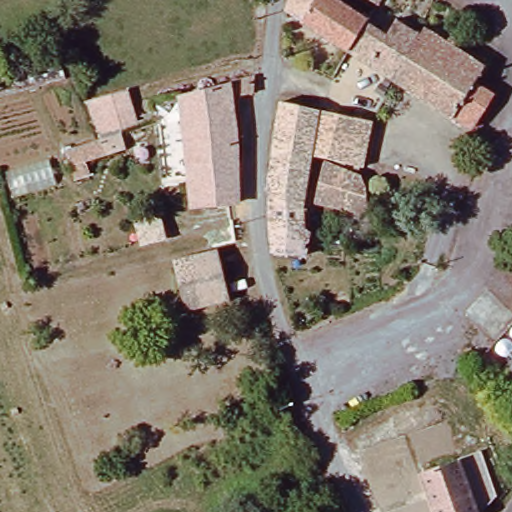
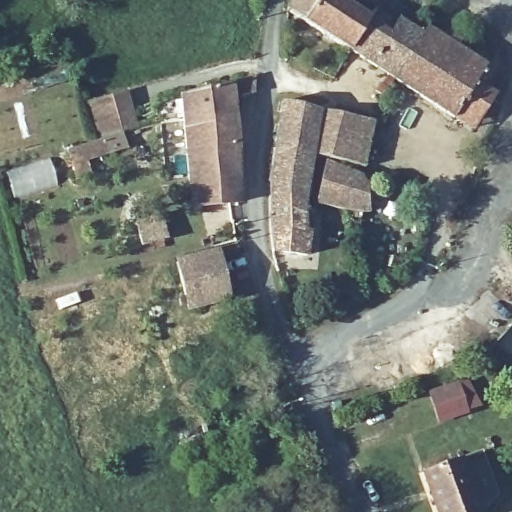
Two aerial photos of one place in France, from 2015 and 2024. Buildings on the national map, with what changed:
unchanged [(290,0),(342,0),(366,15),(364,19),(345,53),(286,15),(290,0)]
unchanged [(487,98),(465,131),(390,82),(345,53),(364,19),(383,33),(392,22),(412,35),(415,30),(478,71),(469,85),(487,98)]
unchanged [(184,184),(178,100),(252,80),(250,100),(232,105),(235,177),(184,184)]
unchanged [(133,122),(118,126),(124,151),(86,165),(88,177),(72,182),(64,149),(95,141),(88,101),(126,91),(133,122)]
unchanged [(309,165),(268,159),(277,100),(314,110),(321,111),(313,147),(309,165)]
unchanged [(362,186),(362,205),(314,199),(321,152),(317,150),(313,147),(321,111),(365,124),(357,175),(362,186)]
unchanged [(310,206),(305,248),(275,244),(272,243),(268,216),(265,174),(268,159),(309,165),(303,205),(310,206)]
unchanged [(236,201),(187,207),(184,184),(235,177),(236,201)]
unchanged [(153,203),(158,222),(134,229),(128,209),(153,203)]
unchanged [(187,308),(175,262),(216,251),(229,298),(187,308)]
demolished [(512,330),(512,365),(494,349),(512,330)]
new [(467,378),(478,406),(467,410),(468,413),(438,423),(428,391),(458,381),(467,378)]
unchanged [(470,512),(430,512),(419,475),(455,463),(455,464),(470,512)]

